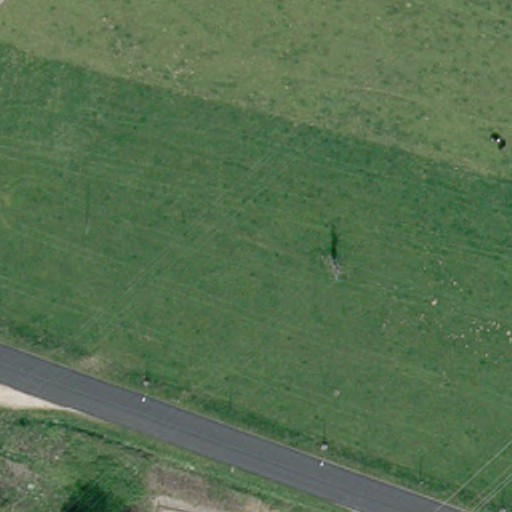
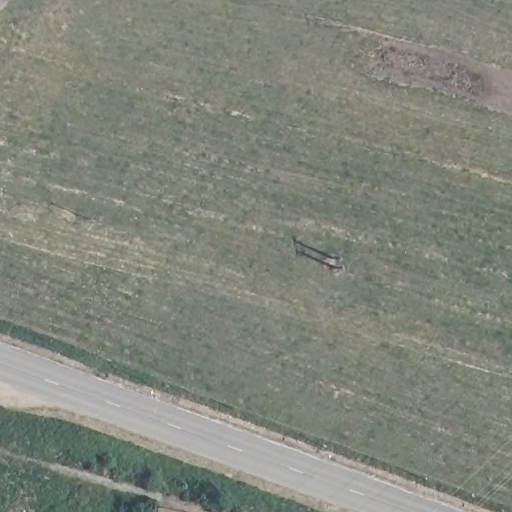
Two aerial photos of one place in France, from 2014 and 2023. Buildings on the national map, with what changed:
[]

